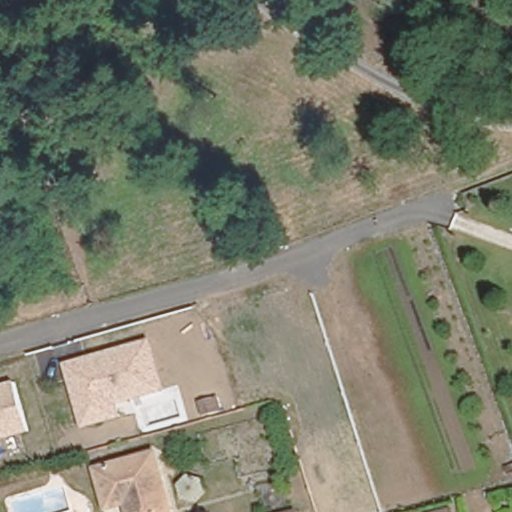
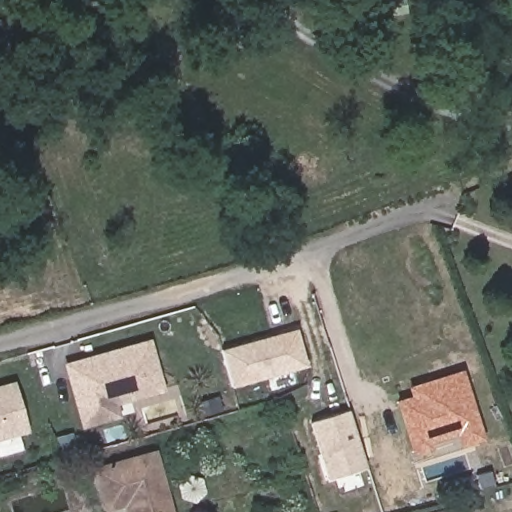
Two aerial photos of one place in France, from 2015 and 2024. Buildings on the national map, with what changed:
new [(231,387),(221,349),(296,328),(307,366),(231,387)]
unchanged [(165,389),(120,403),(123,415),(83,426),(67,362),(153,338),(165,389)]
new [(410,455),(396,401),(411,397),(408,387),(464,371),(484,441),(462,449),(459,438),(410,455)]
unchanged [(29,431),(0,439),(0,387),(19,383),(29,431)]
new [(349,409),(367,468),(328,480),(310,422),(349,409)]
unchanged [(171,512),(128,512),(124,496),(106,502),(94,463),(151,447),(171,512)]
unchanged [(203,478),(208,492),(198,502),(185,498),(181,484),(190,475),(203,478)]
unchanged [(306,512),(289,512),(304,507),(306,512)]

